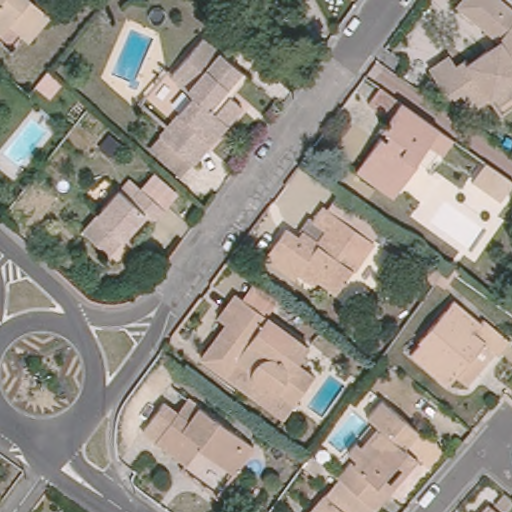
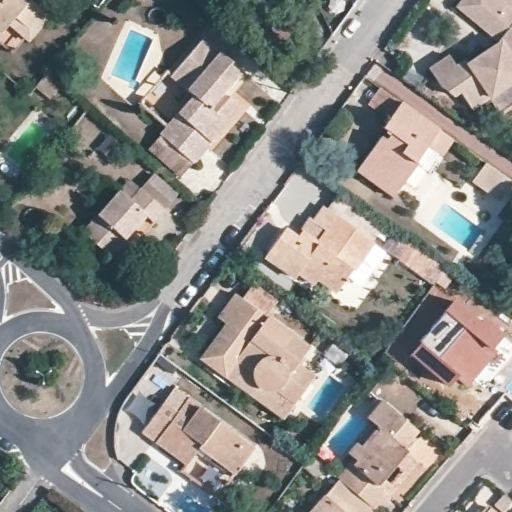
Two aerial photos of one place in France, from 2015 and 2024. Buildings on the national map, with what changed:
unchanged [(34,0),(33,2),(48,14),(53,19),(32,45),(10,27),(6,32),(0,40),(0,0),(34,0)]
unchanged [(467,91),(460,94),(444,84),(434,67),(452,55),(458,62),(469,55),(472,60),(484,51),(502,39),(461,5),(466,0),(504,0),(510,5),(505,11),(512,17),(512,84),(508,86),(497,94),(477,106),(467,91)]
unchanged [(202,35),(210,25),(228,41),(221,50),(239,65),(246,72),(229,93),(239,102),(190,158),(158,130),(164,124),(192,92),(169,72),(202,35)]
unchanged [(386,119),(366,105),(378,89),(398,102),(437,130),(452,142),(442,157),(426,145),(413,164),(414,165),(391,197),(354,171),(378,139),(382,141),(387,134),(380,129),(386,119)]
unchanged [(83,233),(85,230),(102,210),(120,190),(130,200),(140,188),(165,210),(153,223),(145,216),(124,240),(112,255),(111,256),(83,233)]
unchanged [(292,278),(273,265),(262,256),(268,247),(280,230),(293,239),(298,231),(306,235),(315,242),(324,231),(312,222),(323,208),(371,242),(336,292),(318,280),(313,285),(296,273),(292,278)]
unchanged [(433,280),(398,255),(406,242),(443,267),(447,261),(458,270),(454,276),(450,273),(441,286),(433,280)]
unchanged [(231,303),(214,290),(227,272),(244,285),(233,300),(305,351),(294,368),(312,381),(281,423),(199,365),(224,330),(216,323),(231,303)]
unchanged [(454,370),(444,380),(409,350),(418,340),(416,337),(450,297),(477,320),(480,316),(505,338),(495,350),(493,348),(465,380),(454,370)]
unchanged [(387,490),(374,506),(337,474),(353,455),(345,448),(354,438),(359,442),(376,421),(366,414),(380,397),(414,426),(399,442),(404,446),(416,457),(387,490)]
unchanged [(135,427),(157,400),(182,417),(192,403),(246,444),(227,470),(192,444),(179,460),(135,427)]
unchanged [(321,490),(322,491),(337,474),(374,506),(369,512),(303,512),(321,490)]
unchanged [(485,505),(493,511),(494,512),(480,512),(485,505)]

